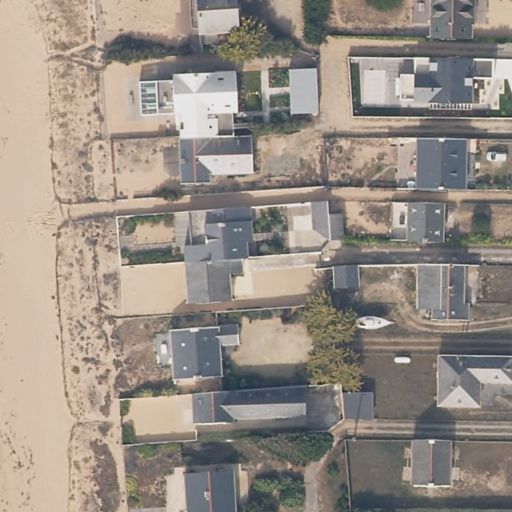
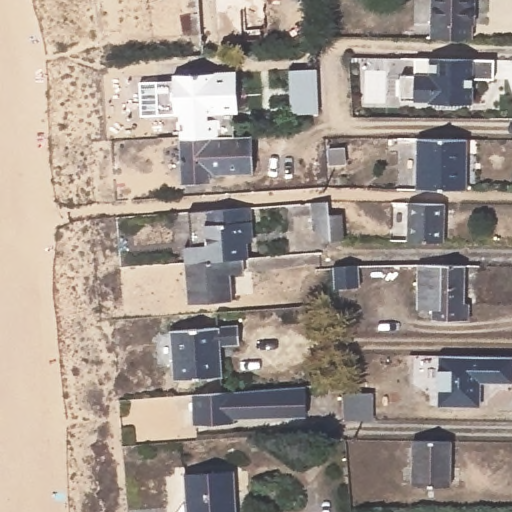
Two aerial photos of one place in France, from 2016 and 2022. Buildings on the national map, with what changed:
unchanged [(240,28),(220,30),(220,40),(202,42),(200,0),(238,0),(240,28)]
unchanged [(476,22),(474,23),(473,40),(433,39),(433,0),(476,0),(476,22)]
unchanged [(402,99),(395,98),(395,79),(400,79),(401,74),(415,74),(415,56),(493,58),(492,76),(475,77),(474,102),(402,99)]
unchanged [(318,112),(292,113),(290,68),(316,67),(318,112)]
unchanged [(184,116),(181,117),(177,117),(173,114),(171,109),(170,104),(171,100),(174,98),(177,96),(182,95),(180,77),(224,73),(227,129),(240,128),(240,135),(186,138),(184,116)]
unchanged [(257,133),(260,171),(217,174),(217,184),(190,186),(186,138),(240,135),(257,133)]
unchanged [(418,134),(465,135),(465,182),(466,185),(419,184),(418,182),(418,134)]
unchanged [(345,234),(332,234),(318,225),(316,200),(329,199),(330,209),(343,208),(345,234)]
unchanged [(445,238),(410,238),(410,199),(445,199),(445,238)]
unchanged [(196,223),(208,222),(207,207),(255,204),(256,231),(250,231),(251,252),(244,253),(198,256),(196,223)]
unchanged [(244,253),(244,266),(230,267),(232,297),(190,300),(186,256),(198,256),(244,253)]
unchanged [(360,259),(361,281),(336,283),(335,268),(335,261),(360,259)]
unchanged [(471,318),(433,318),(434,303),(418,302),(418,298),(417,288),(418,263),(466,263),(466,298),(471,298),(471,318)]
unchanged [(241,344),(221,345),(224,376),(177,379),(175,329),(240,325),(241,344)]
unchanged [(483,384),(483,406),(442,406),(442,357),(512,357),(512,384),(483,384)]
unchanged [(305,411),(236,413),(236,418),(195,420),(194,390),(305,383),(305,411)]
unchanged [(375,419),(347,419),(345,393),(373,392),(375,419)]
unchanged [(455,486),(415,486),(415,444),(455,444),(455,486)]
unchanged [(234,471),(236,512),(187,512),(184,475),(234,471)]

